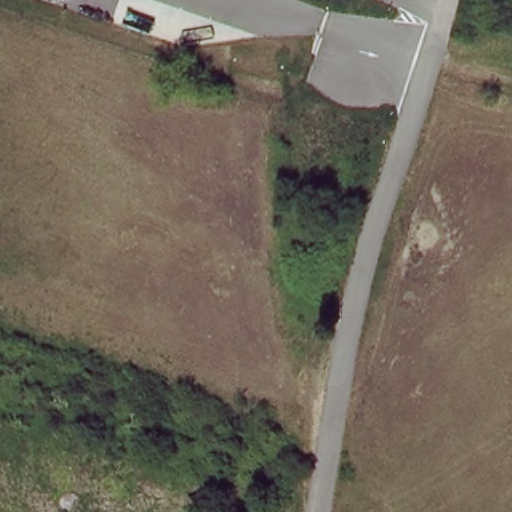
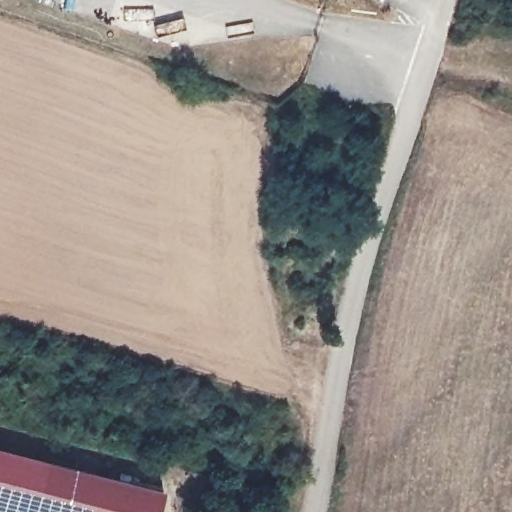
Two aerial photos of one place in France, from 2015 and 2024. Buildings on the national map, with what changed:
new [(0,445),(163,488),(157,512),(0,512),(0,445)]

